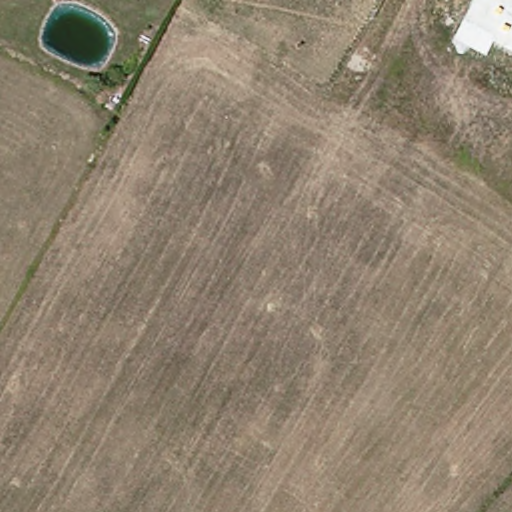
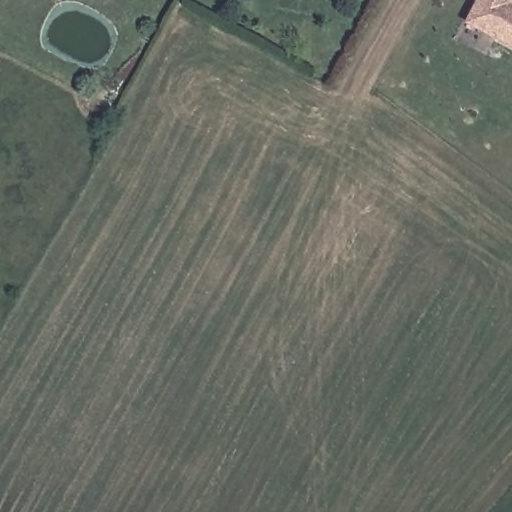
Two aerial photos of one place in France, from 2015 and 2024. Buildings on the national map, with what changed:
new [(478,0),(512,0),(512,48),(465,25),(478,0)]

